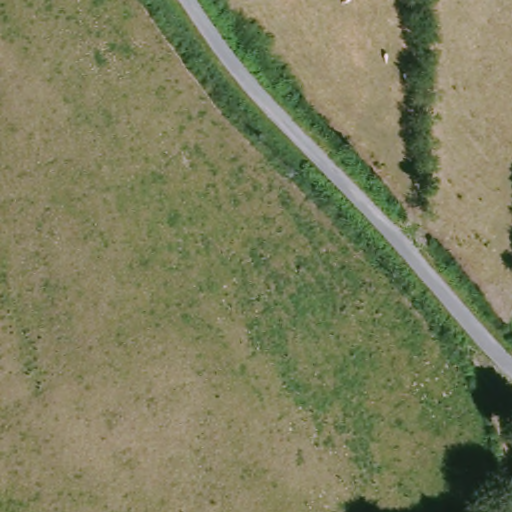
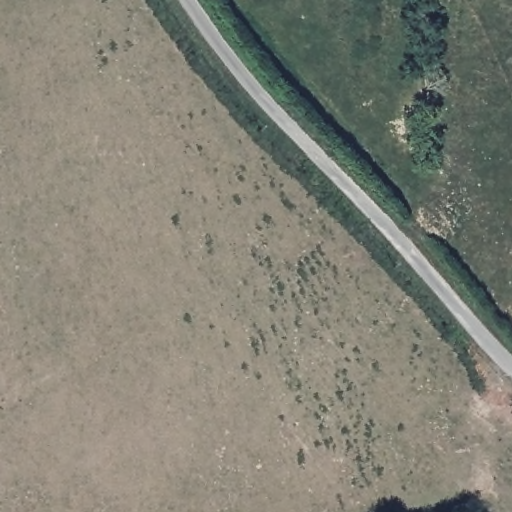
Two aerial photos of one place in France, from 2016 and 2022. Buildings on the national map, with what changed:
[]

